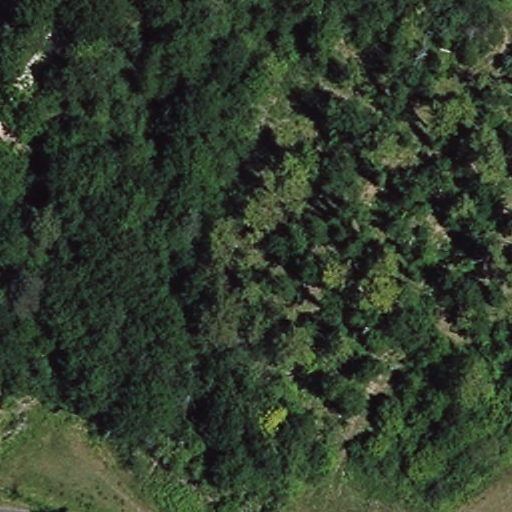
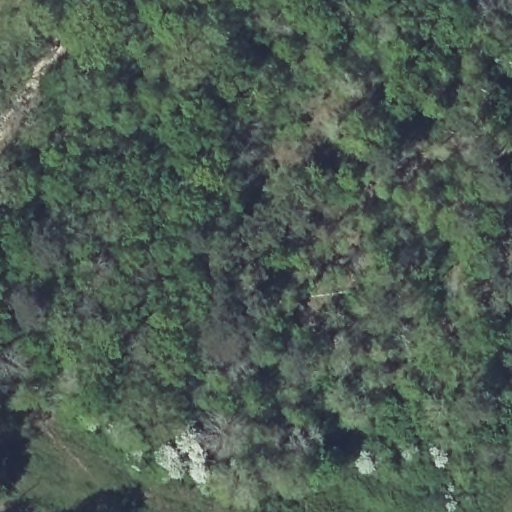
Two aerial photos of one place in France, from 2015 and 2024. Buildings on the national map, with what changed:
[]

